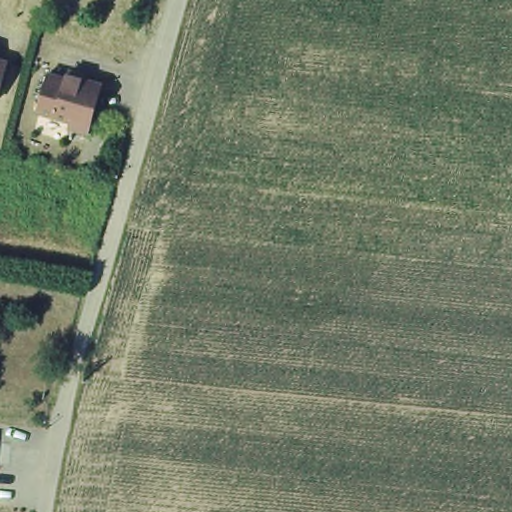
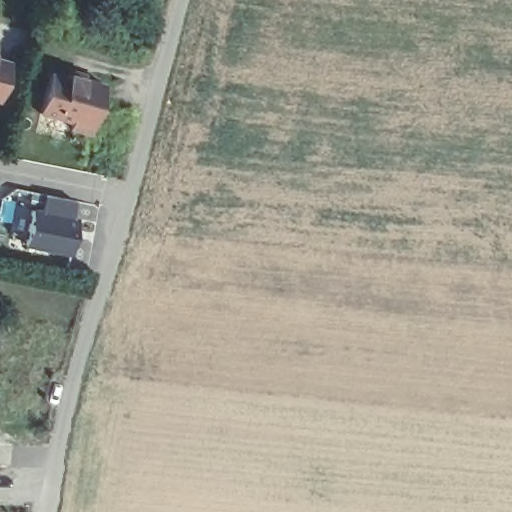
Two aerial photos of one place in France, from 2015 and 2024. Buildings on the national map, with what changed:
unchanged [(85,137),(65,132),(67,126),(35,116),(45,77),(62,82),(63,78),(98,88),(85,137)]
new [(31,208),(41,210),(45,193),(74,199),(70,216),(75,217),(68,252),(25,243),(31,208)]

